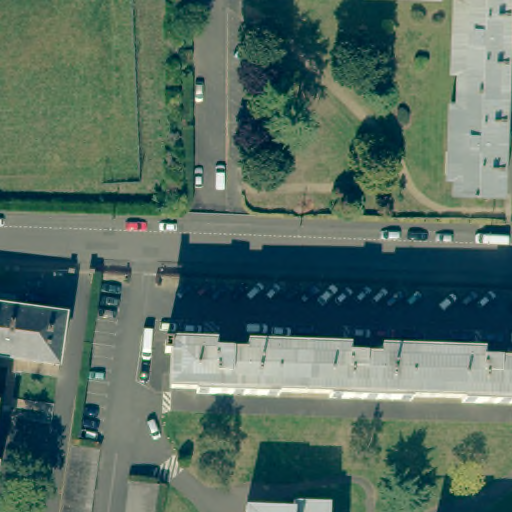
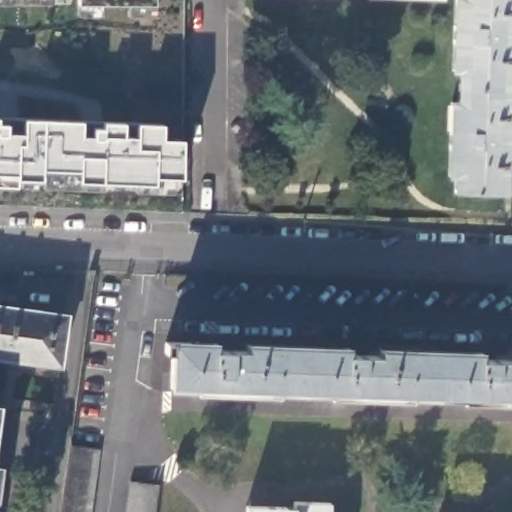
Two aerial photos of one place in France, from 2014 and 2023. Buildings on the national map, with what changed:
new [(0,5),(0,0),(51,0),(51,6),(0,5)]
new [(77,3),(77,0),(154,0),(154,4),(77,3)]
unchanged [(456,147),(448,147),(449,129),(456,129),(459,43),(452,43),(453,23),(460,23),(461,0),(511,0),(510,42),(512,42),(512,118),(512,133),(506,133),(503,194),(454,192),(456,147)]
new [(183,141),(183,178),(155,178),(155,184),(101,183),(101,192),(0,185),(0,118),(23,119),(163,125),(161,141),(183,141)]
unchanged [(61,360),(3,352),(0,373),(0,301),(68,310),(61,360)]
unchanged [(483,392),(483,398),(461,397),(462,393),(412,391),(412,389),(351,387),(351,393),(330,393),(330,388),(279,387),(279,384),(218,382),(217,388),(197,387),(197,383),(172,382),(173,347),(165,347),(166,337),(217,338),(217,344),(305,347),(305,342),(350,343),(350,349),(437,352),(437,346),(483,348),(483,354),(512,355),(512,393),(483,392)]
unchanged [(71,440),(100,444),(90,512),(60,512),(71,440)]
unchanged [(131,480),(159,484),(155,512),(126,512),(131,480)]
unchanged [(243,504),(276,505),(276,511),(289,511),(289,496),(329,497),(329,512),(243,512),(243,504)]

